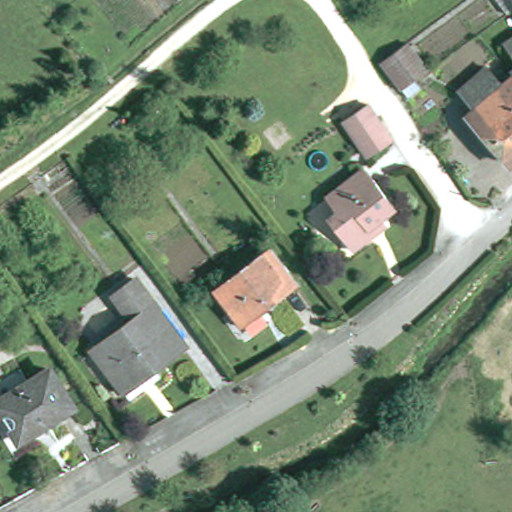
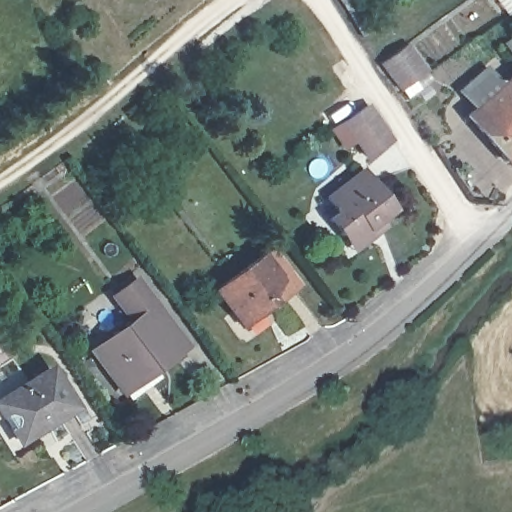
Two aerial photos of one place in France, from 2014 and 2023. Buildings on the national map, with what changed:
unchanged [(510,17),(497,0),(512,0),(512,16),(510,17)]
unchanged [(403,94),(383,65),(410,46),(431,75),(403,94)]
unchanged [(510,50),(512,48),(512,54),(510,50)]
unchanged [(478,111),(464,94),(491,71),(505,88),(512,82),(512,165),(470,118),(478,111)]
unchanged [(345,122),(370,106),(393,141),(368,157),(345,122)]
unchanged [(396,211),(371,231),(375,237),(362,248),(350,233),(345,238),(332,222),(377,186),(396,211)]
unchanged [(218,288),(270,248),(297,283),(244,323),(218,288)]
unchanged [(135,317),(117,292),(137,277),(187,344),(153,368),(159,376),(131,396),(96,347),(135,317)]
unchanged [(0,397),(47,368),(71,405),(15,439),(0,413),(0,397)]

